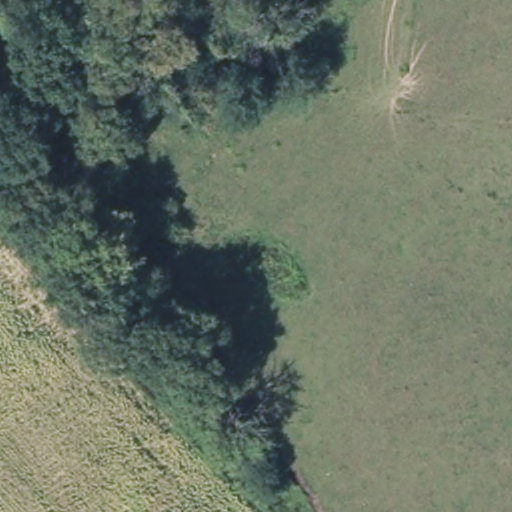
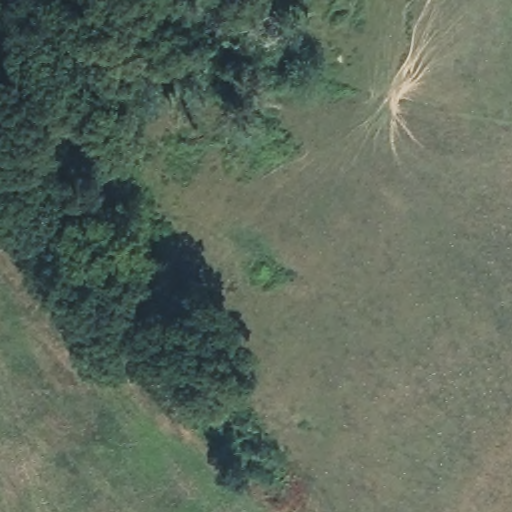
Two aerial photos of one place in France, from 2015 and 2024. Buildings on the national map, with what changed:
[]

